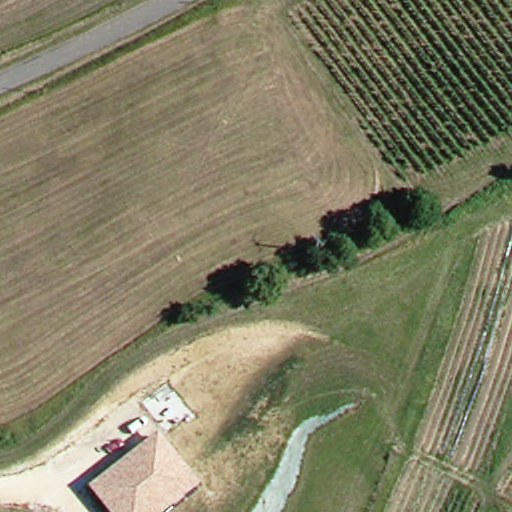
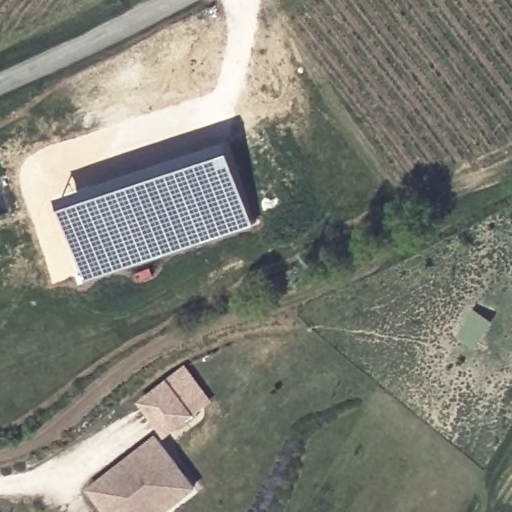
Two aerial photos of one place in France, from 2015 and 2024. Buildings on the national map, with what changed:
new [(258,224),(93,277),(61,196),(233,139),(258,224)]
new [(169,378),(187,365),(214,399),(194,414),(169,378)]
new [(194,414),(165,438),(139,402),(169,378),(194,414)]
unchanged [(171,512),(105,512),(88,491),(159,436),(201,488),(171,512)]

